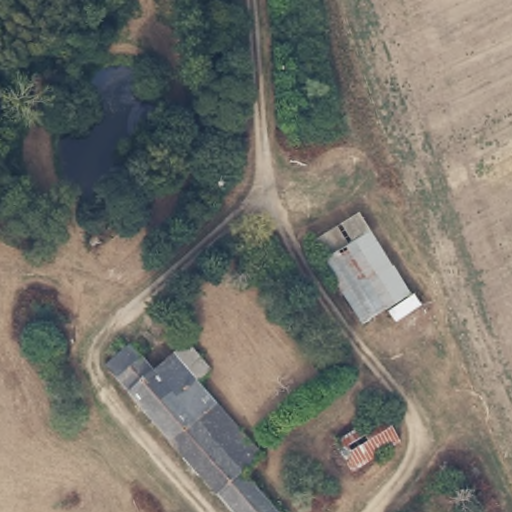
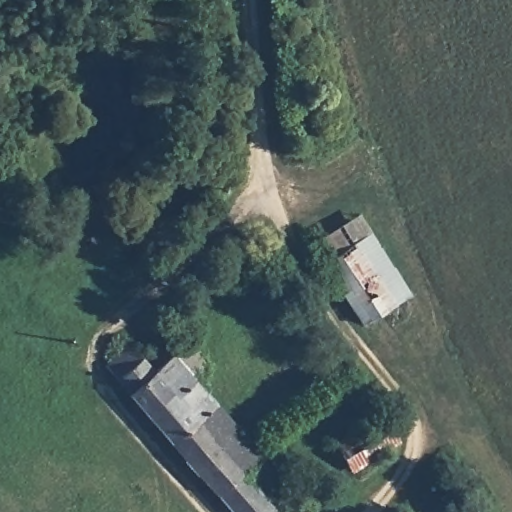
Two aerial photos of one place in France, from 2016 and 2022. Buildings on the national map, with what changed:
unchanged [(356,244),(397,307),(371,325),(327,263),(330,262),(356,244)]
unchanged [(247,278),(240,285),(233,276),(240,268),(247,278)]
unchanged [(304,352),(287,332),(299,322),(316,341),(304,352)]
unchanged [(145,420),(125,397),(128,395),(122,388),(103,367),(127,347),(138,358),(146,367),(152,373),(161,366),(184,345),(205,369),(191,381),(145,420)]
unchanged [(209,407),(166,445),(145,420),(191,381),(212,406),(209,407)]
unchanged [(237,474),(212,496),(166,445),(209,407),(212,406),(258,456),(237,474)]
unchanged [(347,471),(331,446),(377,417),(394,442),(347,471)]
unchanged [(237,474),(273,512),(226,512),(212,496),(237,474)]

